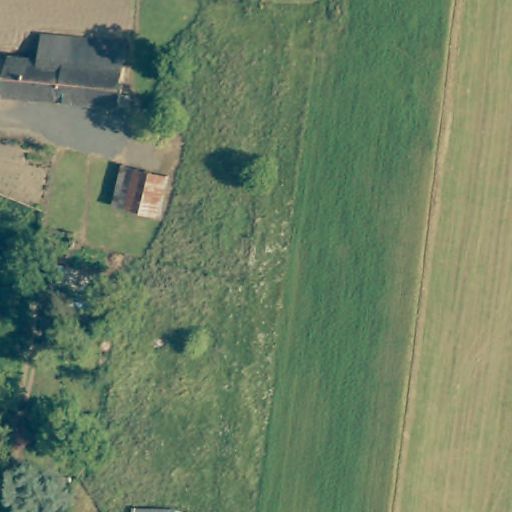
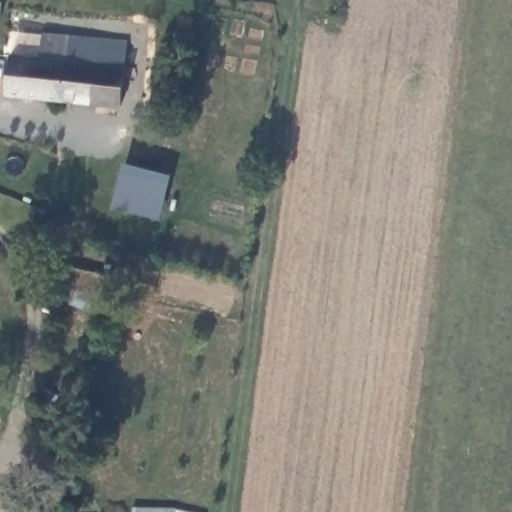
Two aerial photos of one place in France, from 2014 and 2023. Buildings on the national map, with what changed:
unchanged [(129,44),(123,109),(6,98),(8,60),(41,60),(43,36),(129,44)]
unchanged [(168,177),(158,215),(117,206),(125,165),(168,177)]
unchanged [(118,278),(111,294),(48,278),(53,259),(118,278)]
unchanged [(135,506),(146,506),(172,507),(171,512),(134,512),(135,506)]
unchanged [(204,510),(204,512),(180,512),(180,508),(204,510)]

